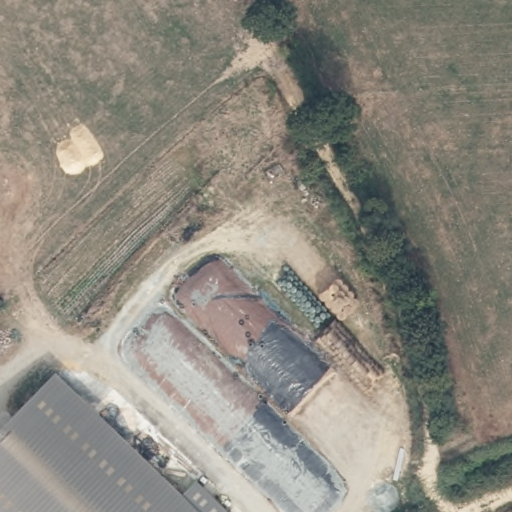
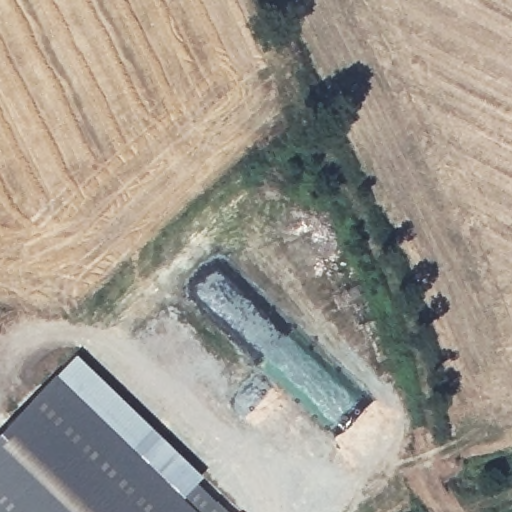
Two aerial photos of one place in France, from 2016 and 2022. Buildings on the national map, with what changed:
new [(196,482),(182,496),(56,375),(77,351),(204,475),(196,482)]
unchanged [(56,375),(182,496),(196,482),(227,512),(0,512),(0,433),(56,375)]

